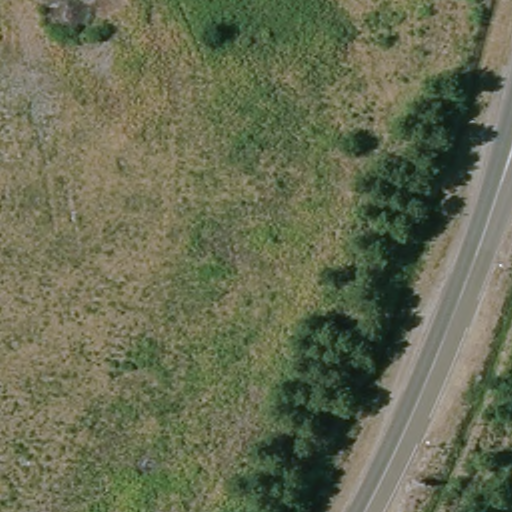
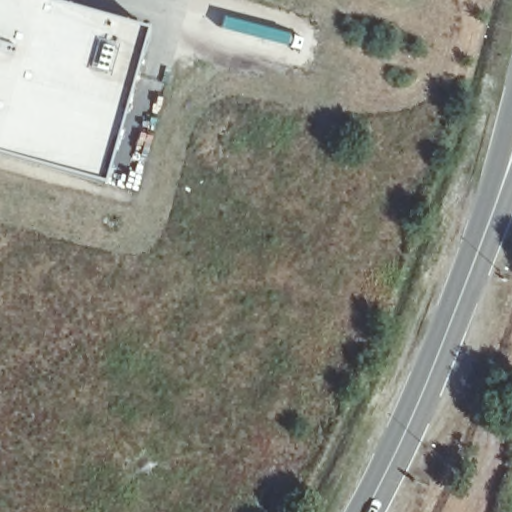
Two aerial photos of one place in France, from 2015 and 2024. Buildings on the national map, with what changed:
new [(145,28),(101,181),(0,152),(0,0),(48,0),(145,28)]

